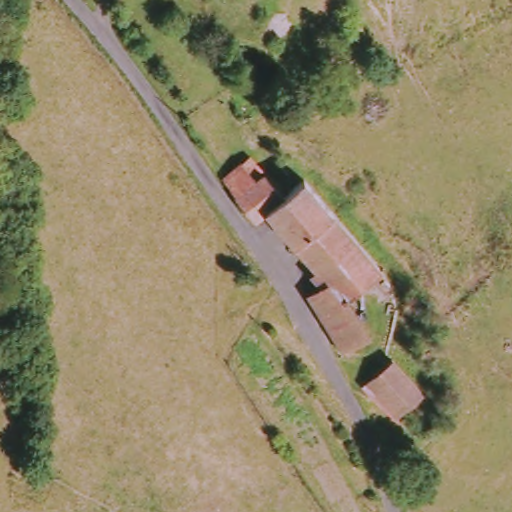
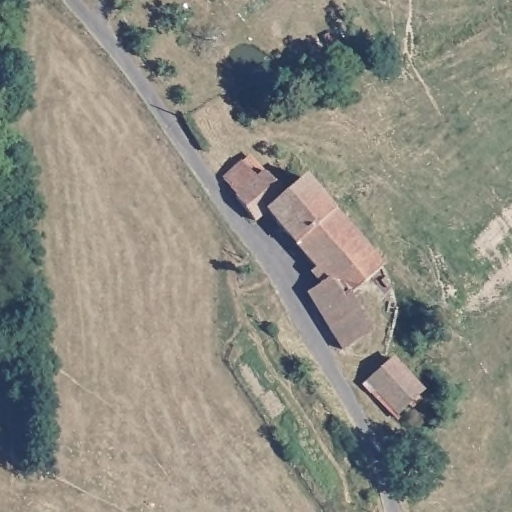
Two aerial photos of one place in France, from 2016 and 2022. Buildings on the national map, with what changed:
unchanged [(258,221),(229,179),(258,158),(289,197),(314,181),(385,273),(354,296),(378,329),(356,348),(318,296),(329,285),(269,212),(263,217),(258,221)]
unchanged [(373,377),(398,360),(429,401),(404,419),(373,377)]

